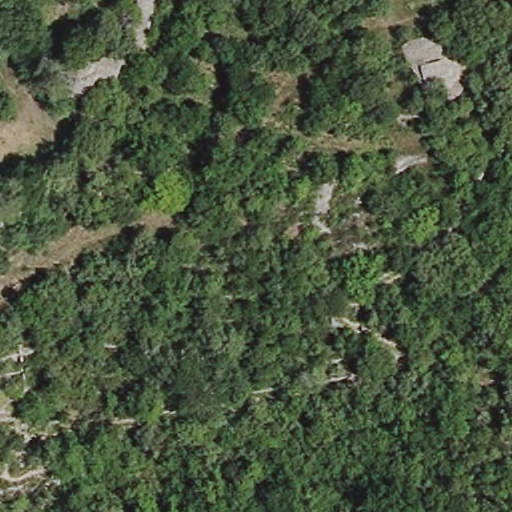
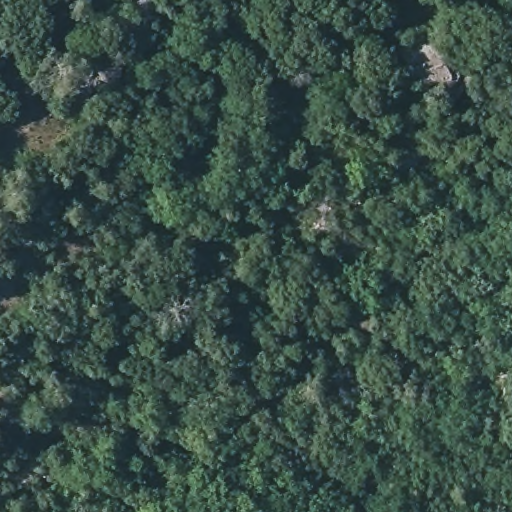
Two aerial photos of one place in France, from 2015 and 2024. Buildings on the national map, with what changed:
unchanged [(457,83),(418,93),(401,45),(444,31),(457,83)]
unchanged [(91,78),(85,97),(63,89),(76,55),(117,62),(112,83),(91,78)]

